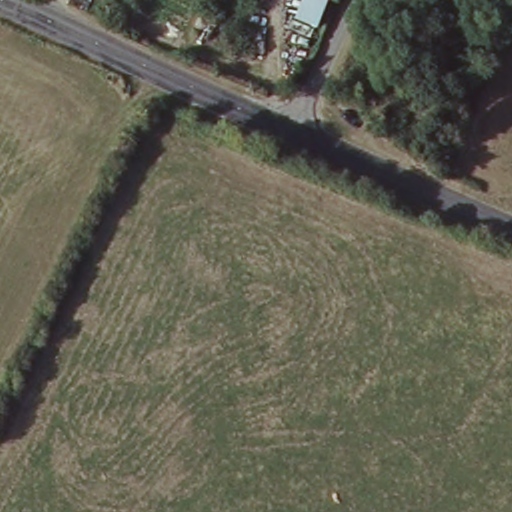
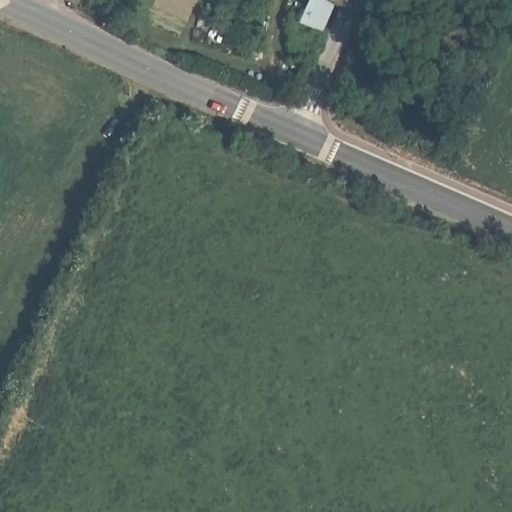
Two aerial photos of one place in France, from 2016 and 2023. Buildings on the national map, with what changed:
unchanged [(299,25),(310,0),(344,0),(340,7),(333,5),(320,34),(299,25)]

